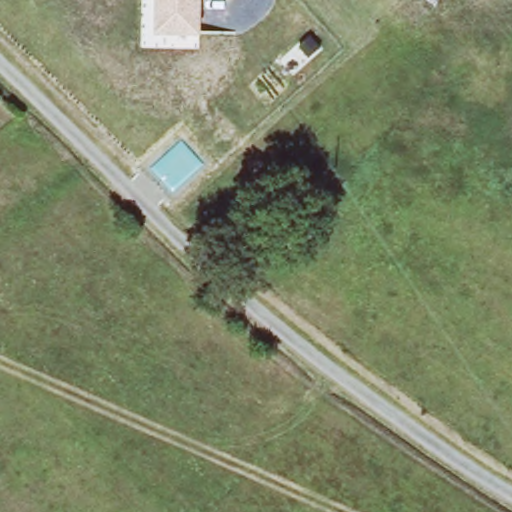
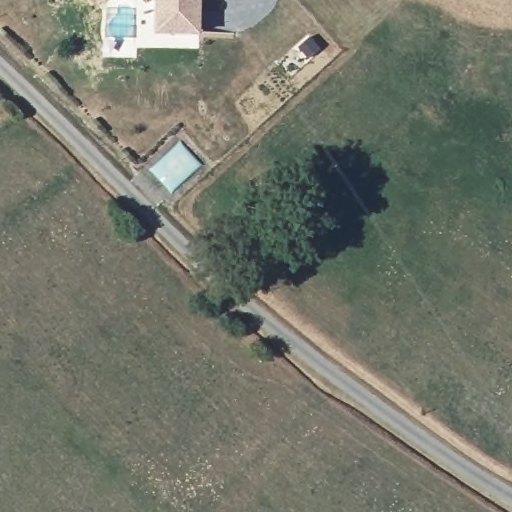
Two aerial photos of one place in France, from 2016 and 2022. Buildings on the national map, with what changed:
unchanged [(159,0),(202,0),(201,34),(175,34),(159,33),(159,18),(159,0)]

